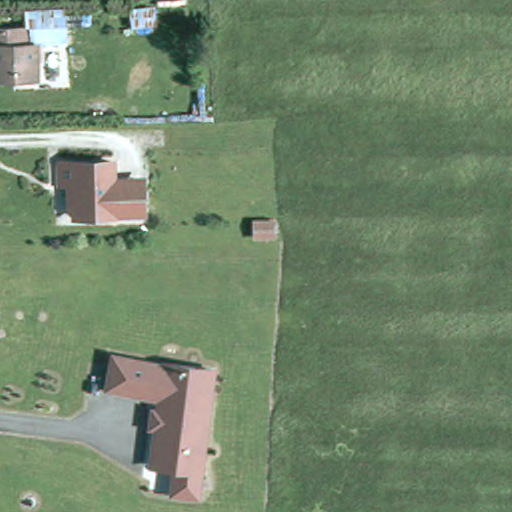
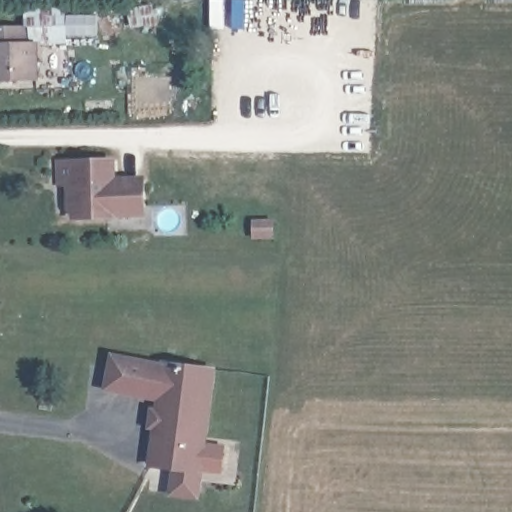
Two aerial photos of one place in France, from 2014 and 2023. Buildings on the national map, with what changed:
unchanged [(0,78),(0,25),(22,24),(22,14),(49,14),(48,41),(32,41),(35,78),(0,78)]
unchanged [(120,211),(82,212),(77,206),(77,198),(81,193),(81,179),(68,180),(67,160),(120,159),(120,179),(150,178),(150,210),(120,211)]
unchanged [(277,239),(256,240),(255,224),(276,224),(277,239)]
unchanged [(178,495),(182,470),(157,467),(162,427),(164,416),(166,400),(114,390),(120,358),(170,369),(170,365),(219,372),(205,474),(202,498),(178,495)]

